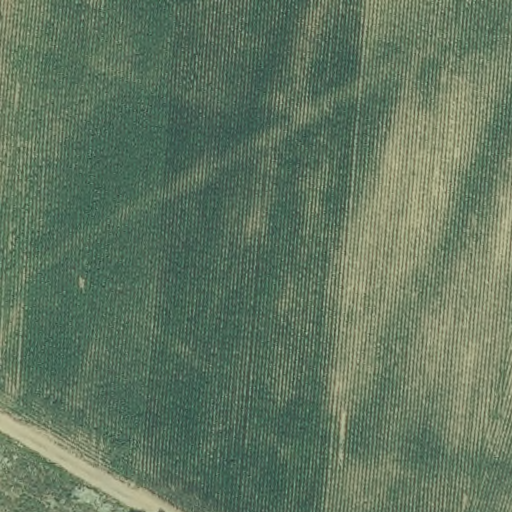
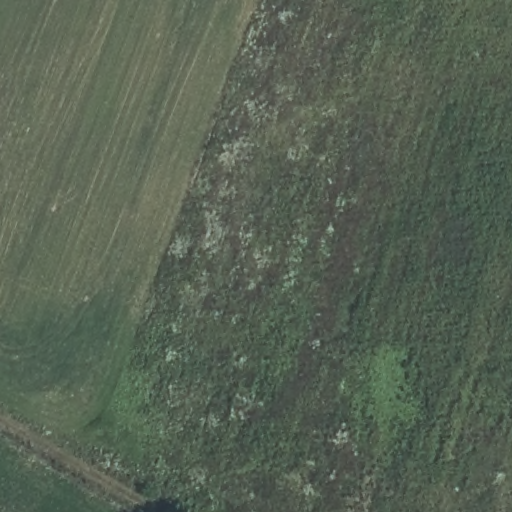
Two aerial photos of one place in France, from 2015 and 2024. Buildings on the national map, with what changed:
[]

